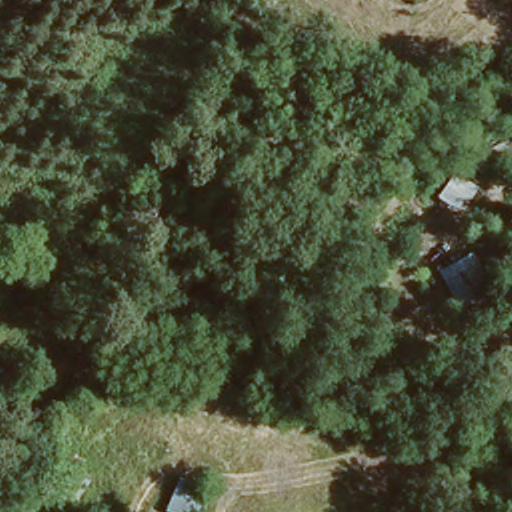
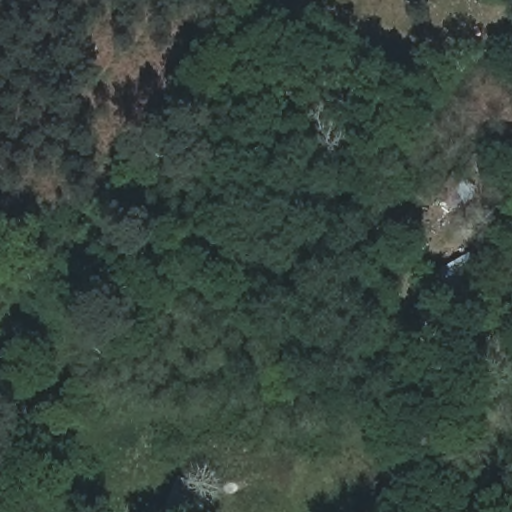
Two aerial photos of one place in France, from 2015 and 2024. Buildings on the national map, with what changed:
unchanged [(470,304),(452,269),(476,256),(493,292),(470,304)]

